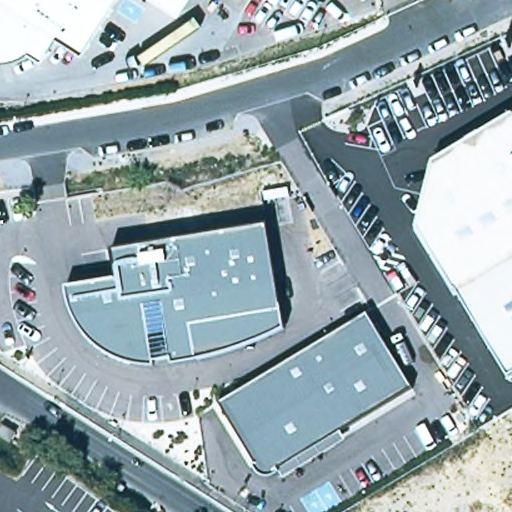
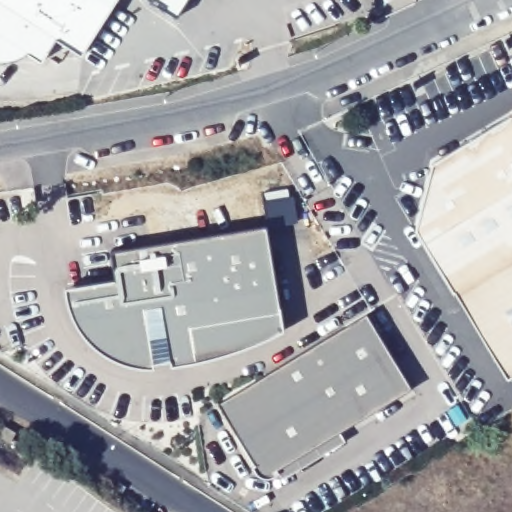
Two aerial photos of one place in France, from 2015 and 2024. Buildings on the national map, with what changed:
unchanged [(82,63),(61,48),(46,69),(37,62),(27,65),(15,67),(7,67),(0,65),(0,0),(121,0),(82,63)]
unchanged [(180,24),(143,0),(195,0),(180,24)]
unchanged [(512,116),(512,375),(508,378),(417,230),(432,163),(512,116)]
unchanged [(267,221),(284,327),(267,335),(255,340),(235,347),(217,352),(204,356),(181,360),(173,362),(172,354),(152,358),(153,364),(145,364),(137,363),(129,362),(116,357),(110,354),(99,347),(85,336),(77,324),(70,310),(65,282),(115,274),(110,247),(267,221)]
unchanged [(372,309),(417,384),(284,465),(287,469),(280,472),(274,473),(267,472),(262,470),(257,465),(255,462),(260,459),(223,399),(372,309)]

